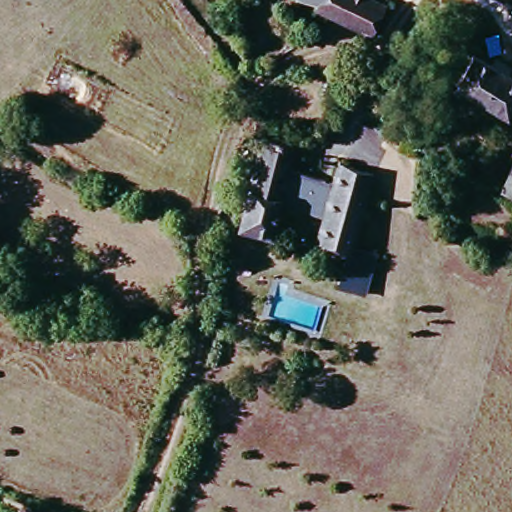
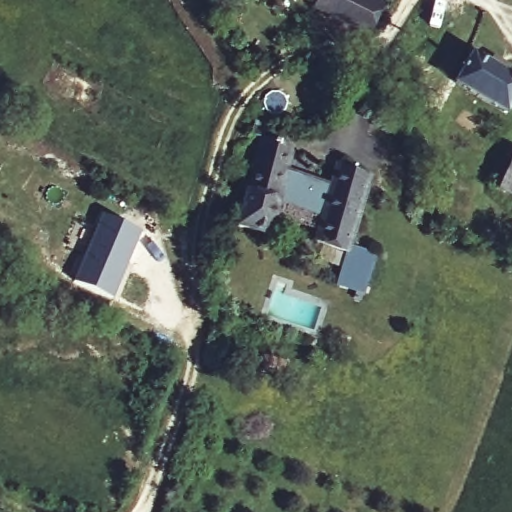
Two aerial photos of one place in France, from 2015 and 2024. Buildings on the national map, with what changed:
unchanged [(260,4),(250,0),(262,0),(260,4)]
unchanged [(379,5),(365,34),(309,12),(311,2),(304,0),(369,0),(379,5)]
unchanged [(512,87),(512,97),(499,116),(451,86),(470,58),(512,87)]
unchanged [(268,236),(235,226),(264,135),(290,144),(268,236)]
unchanged [(512,198),(495,188),(512,158),(512,198)]
unchanged [(366,168),(346,248),(316,240),(337,161),(366,168)]
new [(73,282),(103,214),(143,231),(112,300),(73,282)]

